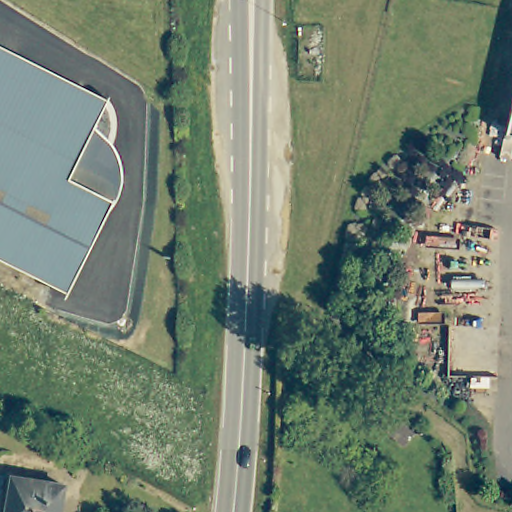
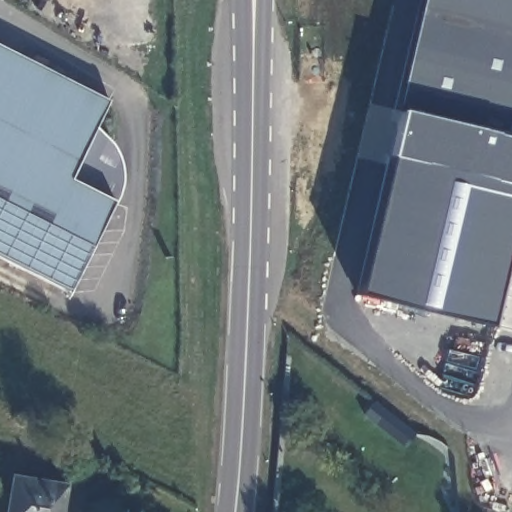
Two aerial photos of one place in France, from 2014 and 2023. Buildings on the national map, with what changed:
new [(492,330),(352,299),(421,0),(512,0),(512,111),(506,136),(512,137),(512,243),(492,330)]
unchanged [(96,124),(106,132),(112,139),(117,148),(121,158),(122,170),(120,182),(116,201),(106,214),(68,290),(0,256),(0,43),(108,97),(96,124)]
unchanged [(512,111),(512,137),(506,136),(512,111)]
unchanged [(66,485),(61,512),(8,512),(15,476),(66,485)]

